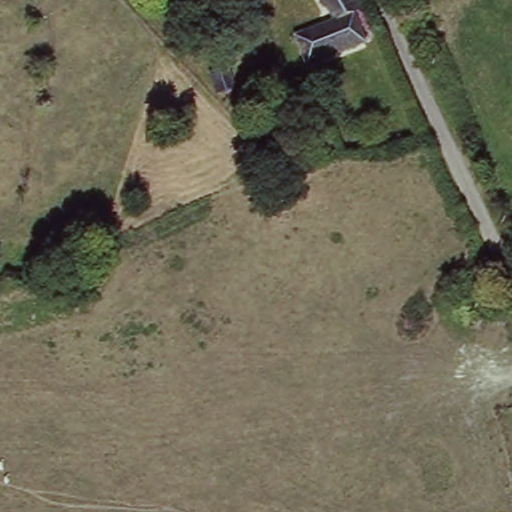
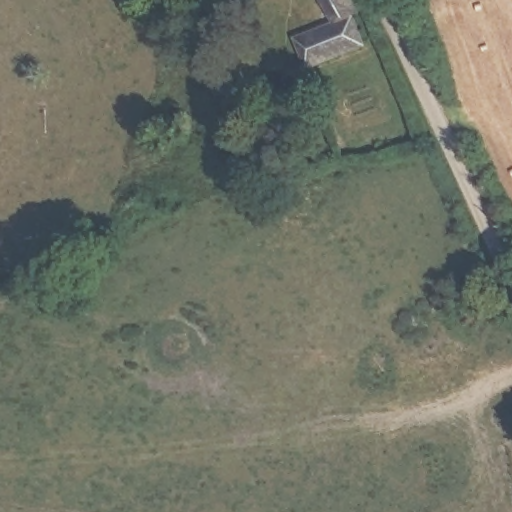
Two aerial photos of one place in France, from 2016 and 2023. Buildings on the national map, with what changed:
unchanged [(361,8),(353,11),(366,35),(307,64),(296,36),(338,19),(336,16),(326,4),(323,0),(356,0),(361,8)]
unchanged [(229,67),(234,86),(218,90),(213,71),(229,67)]

